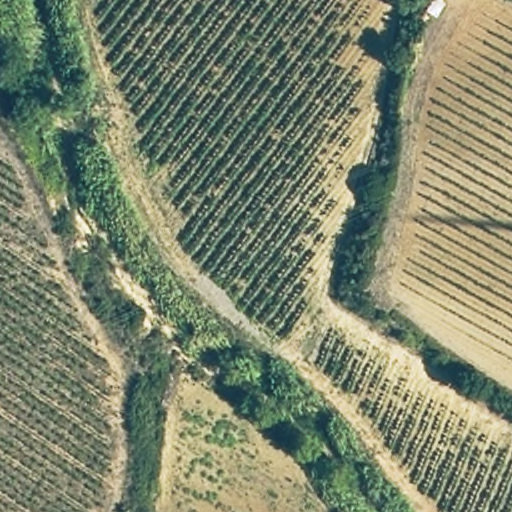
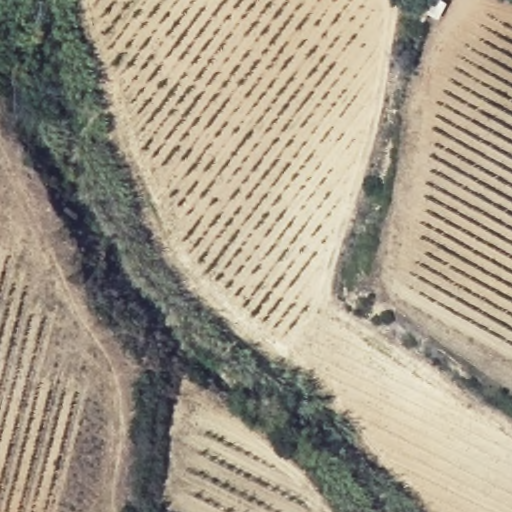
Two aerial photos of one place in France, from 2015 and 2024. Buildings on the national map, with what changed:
unchanged [(445,17),(422,34),(412,19),(434,2),(445,17)]

